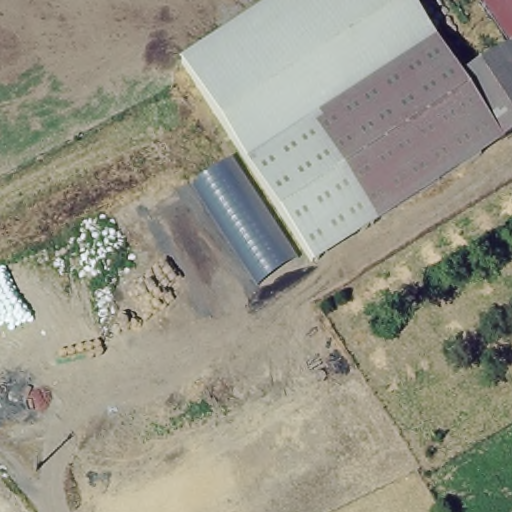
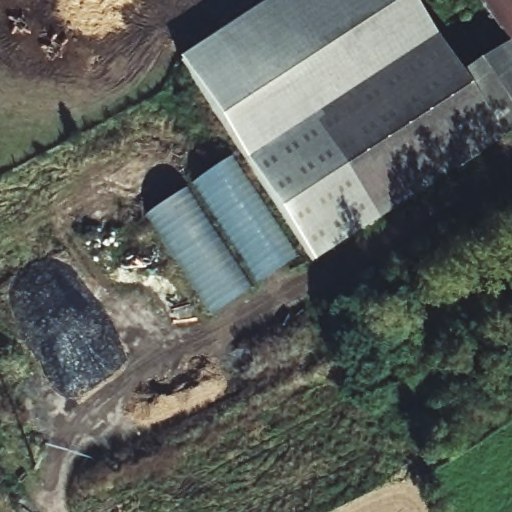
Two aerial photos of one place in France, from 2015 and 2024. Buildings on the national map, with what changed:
unchanged [(175,59),(266,0),(410,0),(437,37),(307,119),(370,220),(310,261),(175,59)]
unchanged [(512,0),(512,39),(480,0),(512,0)]
unchanged [(370,220),(307,119),(437,37),(462,76),(501,138),(370,220)]
unchanged [(512,45),(512,131),(501,138),(462,76),(512,45)]
unchanged [(192,185),(232,158),(297,257),(260,285),(192,185)]
new [(251,288),(216,313),(148,213),(187,188),(251,288)]

